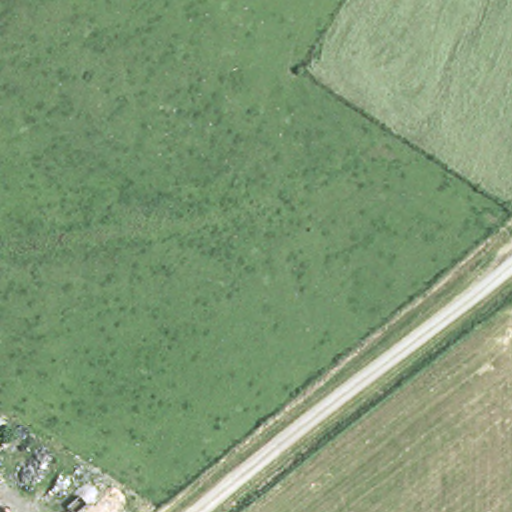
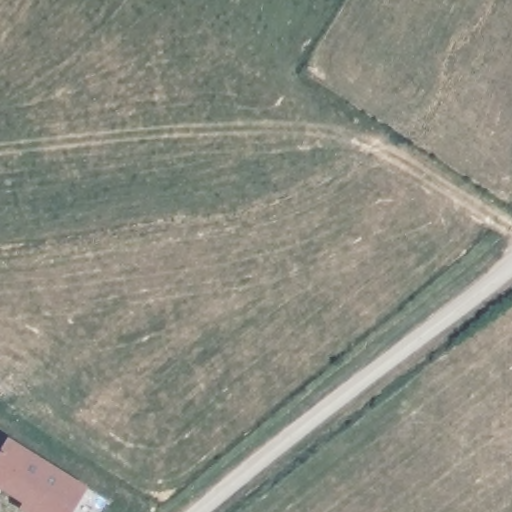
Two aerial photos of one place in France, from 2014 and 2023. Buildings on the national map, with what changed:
new [(0,487),(0,450),(9,435),(89,485),(73,512),(27,512),(19,507),(23,500),(0,487)]

